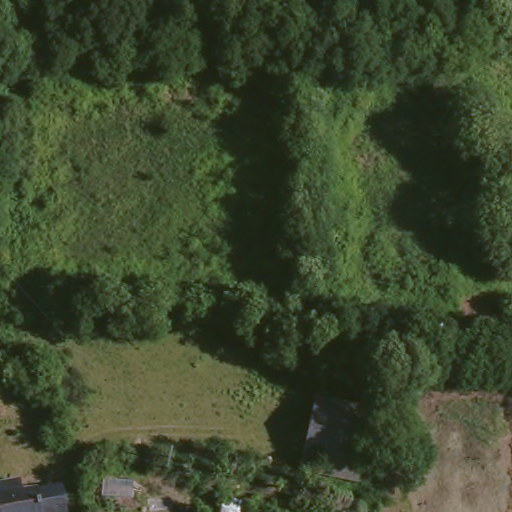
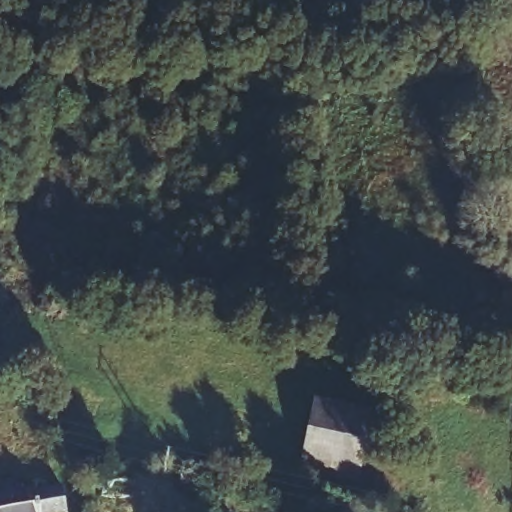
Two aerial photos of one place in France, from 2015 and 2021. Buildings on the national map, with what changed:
unchanged [(365,417),(352,463),(298,448),(312,401),(365,417)]
unchanged [(346,484),(292,468),(298,448),(352,463),(346,484)]
unchanged [(15,483),(18,493),(59,483),(66,512),(0,512),(0,486),(15,483)]

